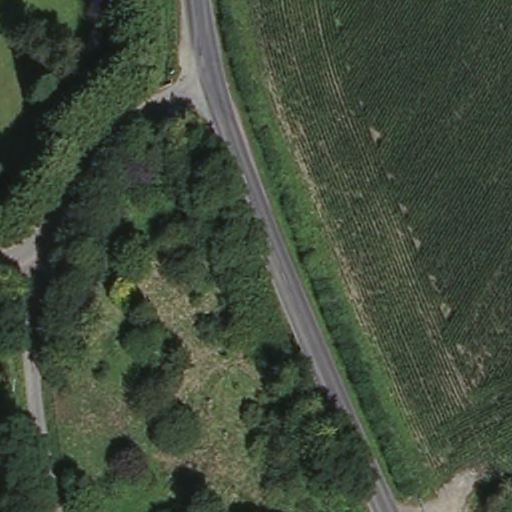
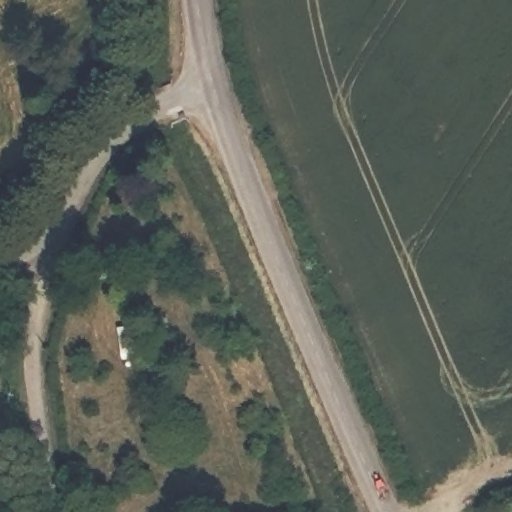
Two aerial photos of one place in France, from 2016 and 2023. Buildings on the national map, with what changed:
[]

